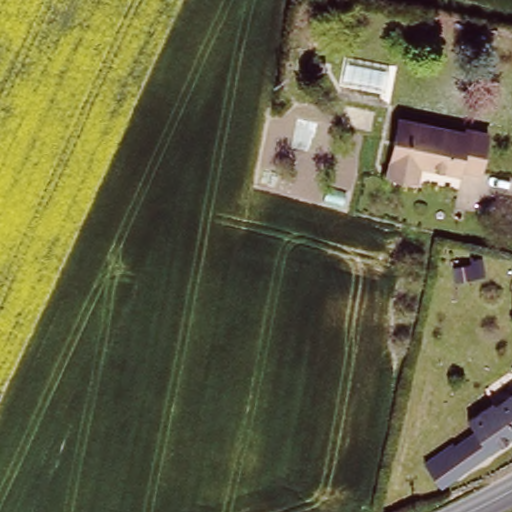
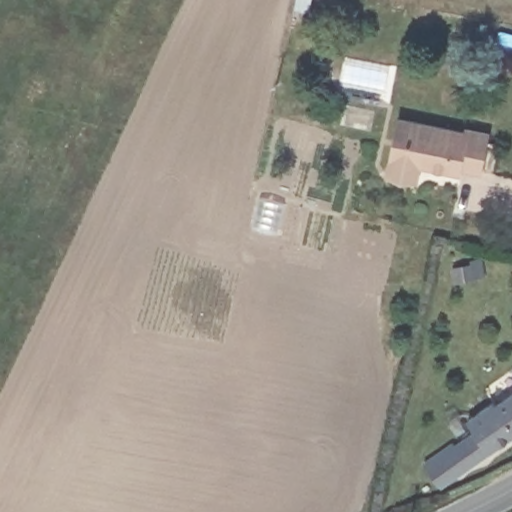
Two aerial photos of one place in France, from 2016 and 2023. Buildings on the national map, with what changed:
unchanged [(462,130),(464,125),(490,131),(482,166),(462,161),(461,168),(421,160),(417,179),(389,173),(400,117),(462,130)]
unchanged [(509,374),(512,372),(512,378),(509,374)]
unchanged [(422,459),(447,441),(450,444),(462,435),(454,425),(489,399),(491,402),(512,387),(512,445),(507,448),(502,440),(441,484),(422,459)]

